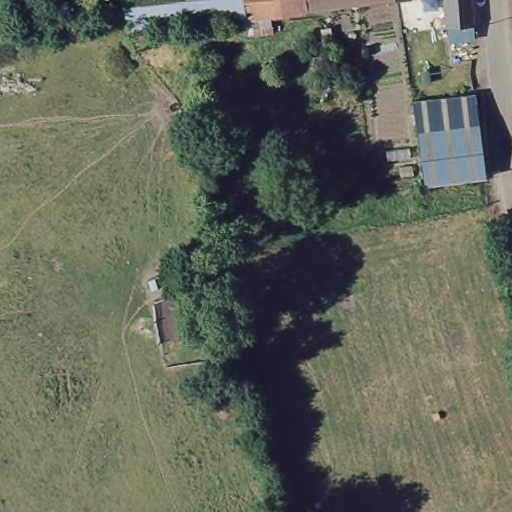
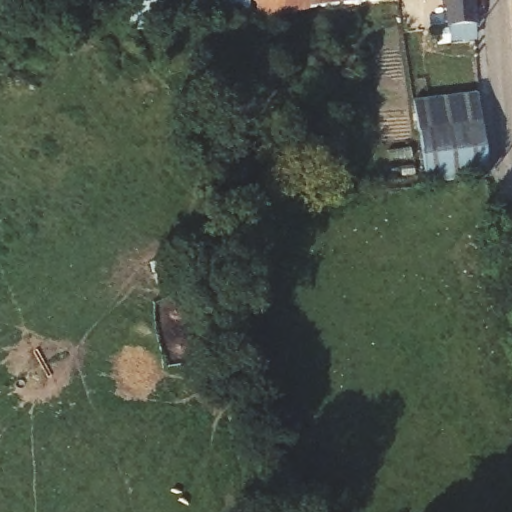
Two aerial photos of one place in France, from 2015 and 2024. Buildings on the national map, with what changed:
unchanged [(375,0),(343,5),(282,15),(247,20),(194,29),(127,40),(124,0),(127,0),(375,0)]
unchanged [(450,16),(448,0),(471,0),(472,14),(450,16)]
unchanged [(478,104),(487,187),(428,195),(419,110),(478,104)]

